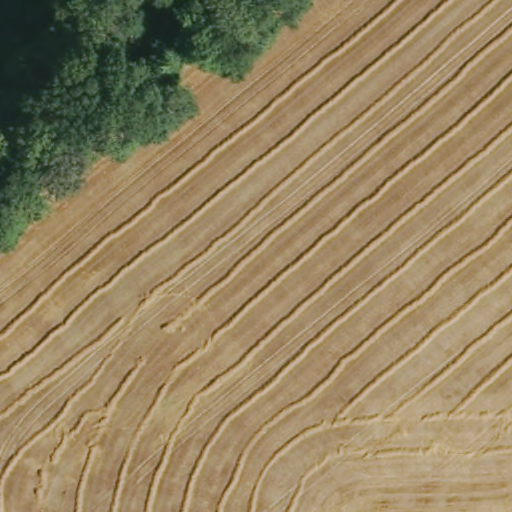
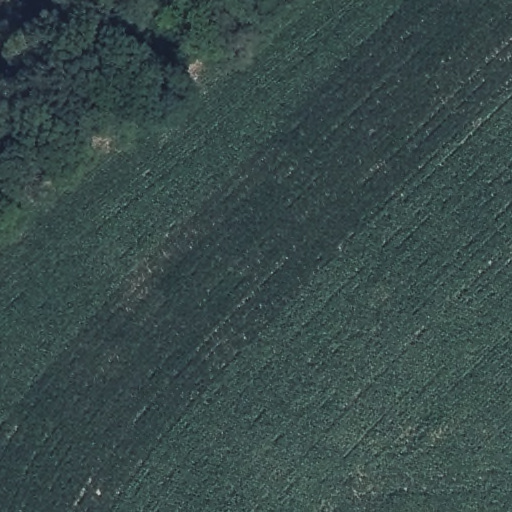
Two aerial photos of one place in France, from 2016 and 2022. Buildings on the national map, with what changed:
[]

